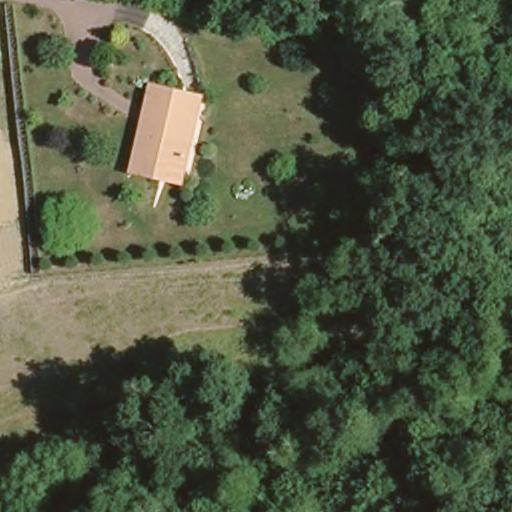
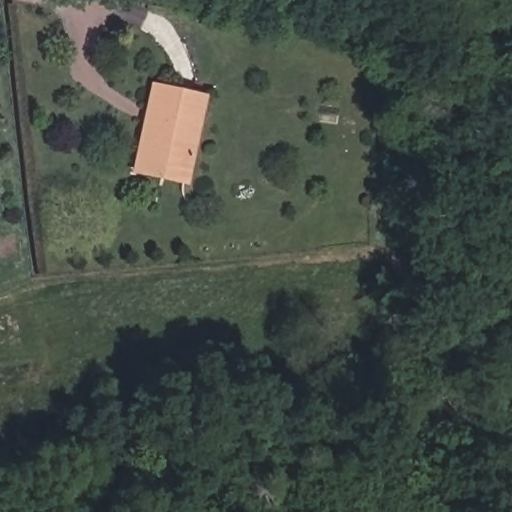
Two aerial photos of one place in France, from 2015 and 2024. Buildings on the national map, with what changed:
unchanged [(153,127),(146,124),(152,104),(143,101),(152,75),(206,93),(181,166),(147,153),(153,127)]
unchanged [(176,180),(122,163),(143,101),(152,104),(146,124),(153,127),(147,153),(181,166),(176,180)]

